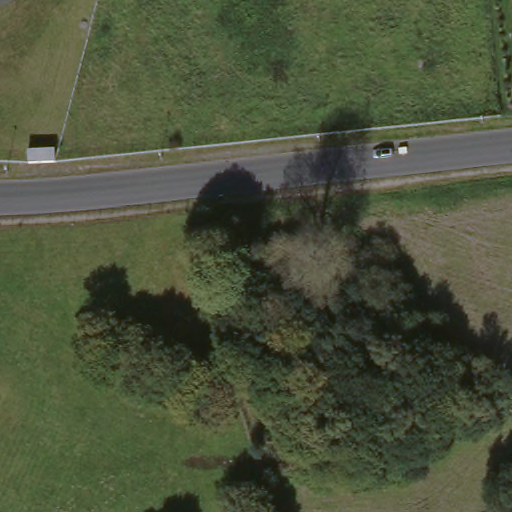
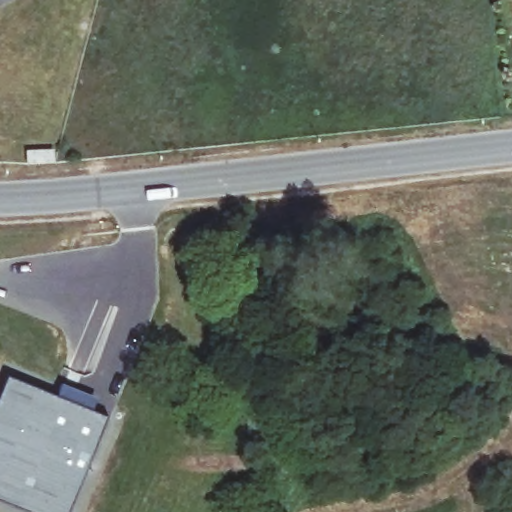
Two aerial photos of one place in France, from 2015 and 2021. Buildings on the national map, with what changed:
new [(65,384),(98,399),(92,413),(107,421),(69,512),(32,512),(0,499),(0,400),(9,378),(58,398),(65,384)]

